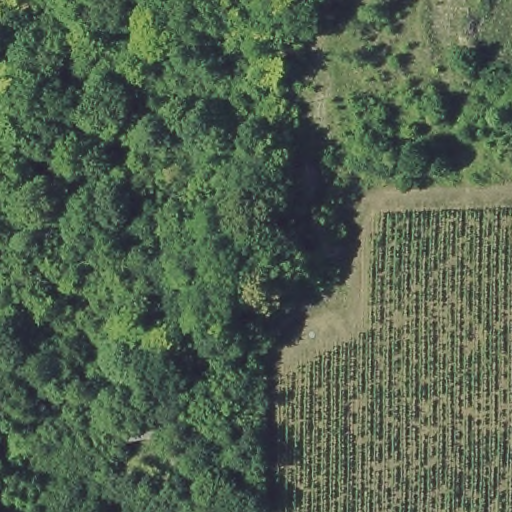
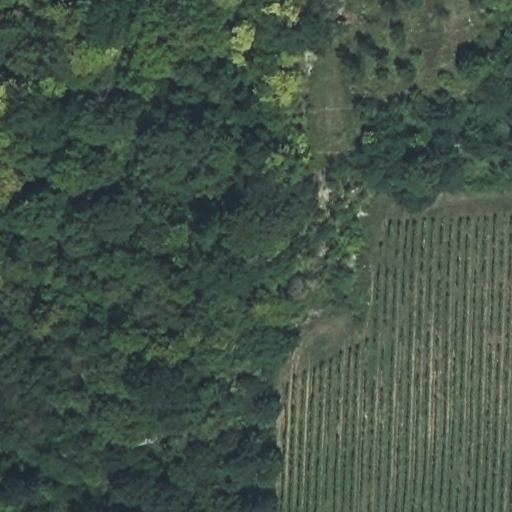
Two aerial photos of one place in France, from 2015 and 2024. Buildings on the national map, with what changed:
unchanged [(124,450),(118,428),(152,421),(157,445),(124,450)]

